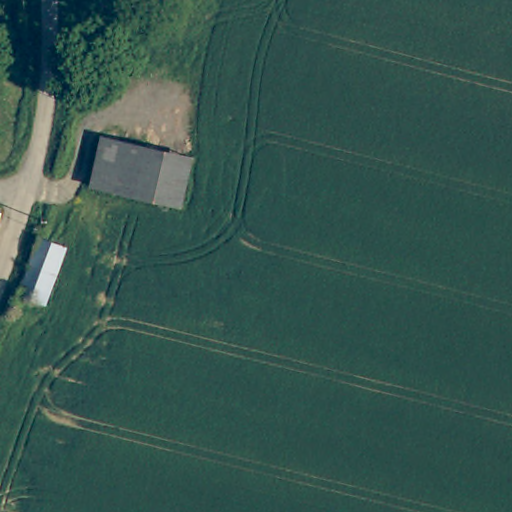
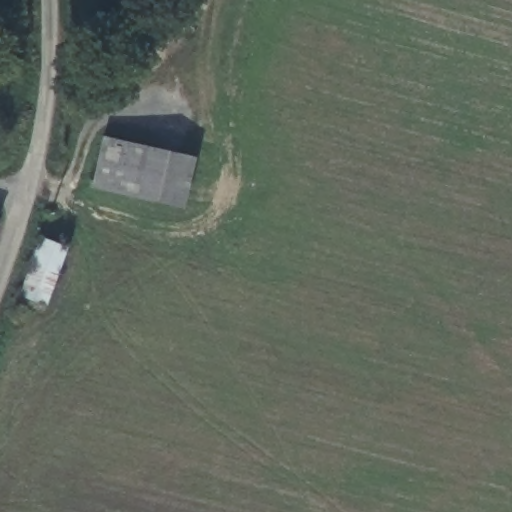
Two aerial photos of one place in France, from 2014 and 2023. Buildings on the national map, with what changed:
unchanged [(168,205),(93,185),(105,140),(183,161),(195,165),(182,209),(168,205)]
unchanged [(68,249),(49,305),(21,295),(40,240),(68,249)]

